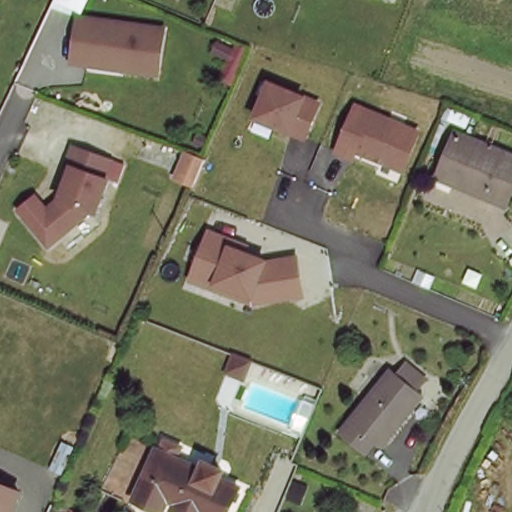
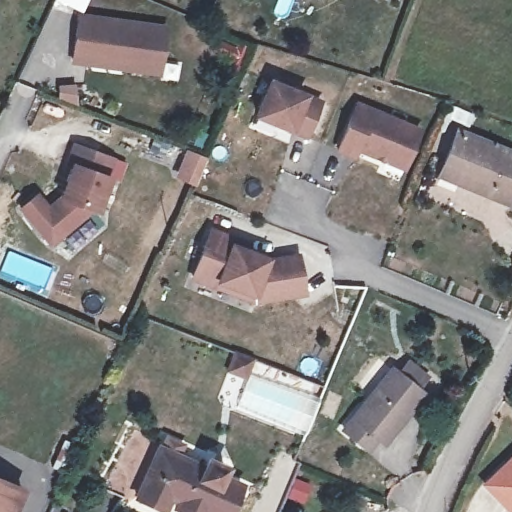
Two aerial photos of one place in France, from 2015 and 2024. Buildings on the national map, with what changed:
unchanged [(162,30),(153,76),(117,69),(115,61),(95,57),(90,62),(65,57),(75,12),(162,30)]
unchanged [(316,99),(301,133),(252,111),(268,77),(316,99)]
unchanged [(415,131),(398,167),(352,147),(348,154),(333,147),(353,102),(415,131)]
unchanged [(457,135),(512,159),(512,190),(504,209),(467,192),(437,179),(443,166),(457,135)]
unchanged [(172,166),(181,142),(201,151),(191,173),(172,166)]
unchanged [(36,198),(46,212),(60,203),(73,172),(70,168),(77,149),(117,167),(110,183),(113,184),(98,221),(90,217),(45,248),(19,210),(36,198)]
unchanged [(298,297),(247,302),(185,275),(200,222),(267,251),(292,248),(298,297)]
unchanged [(233,365),(215,357),(222,340),(240,347),(233,365)]
unchanged [(378,447),(367,462),(341,441),(400,368),(408,374),(418,361),(437,376),(426,389),(432,395),(385,453),(378,447)]
unchanged [(165,512),(152,512),(137,505),(160,453),(162,454),(165,449),(181,457),(178,462),(204,476),(208,468),(225,476),(220,484),(240,493),(231,512),(173,512),(166,508),(165,512)]
new [(512,466),(512,511),(488,487),(512,466)]
unchanged [(14,512),(0,512),(0,484),(22,493),(14,512)]

